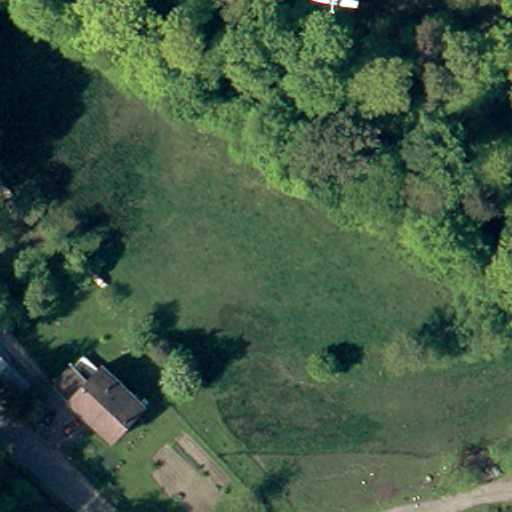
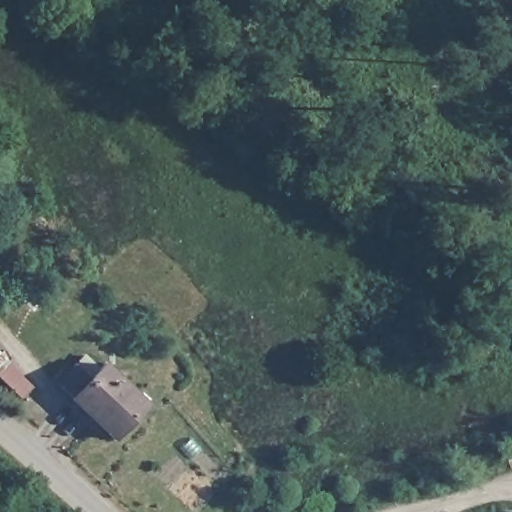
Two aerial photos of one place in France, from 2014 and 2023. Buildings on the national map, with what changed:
unchanged [(141,405),(109,439),(67,400),(51,385),(70,367),(84,382),(99,366),(141,405)]

